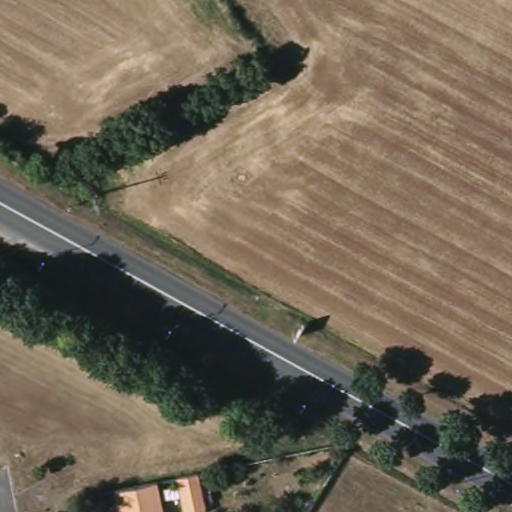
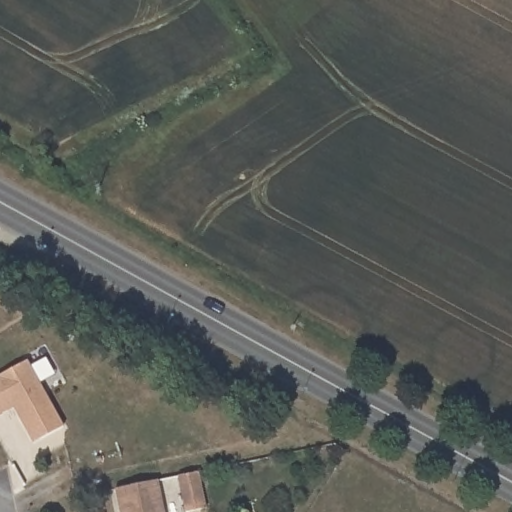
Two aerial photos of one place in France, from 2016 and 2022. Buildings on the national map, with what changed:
new [(28,360),(64,426),(32,444),(12,410),(0,416),(0,375),(28,360)]
unchanged [(209,512),(207,512),(190,512),(183,479),(202,475),(209,512)]
unchanged [(114,487),(132,483),(138,482),(156,478),(163,512),(119,512),(119,511),(114,487)]

